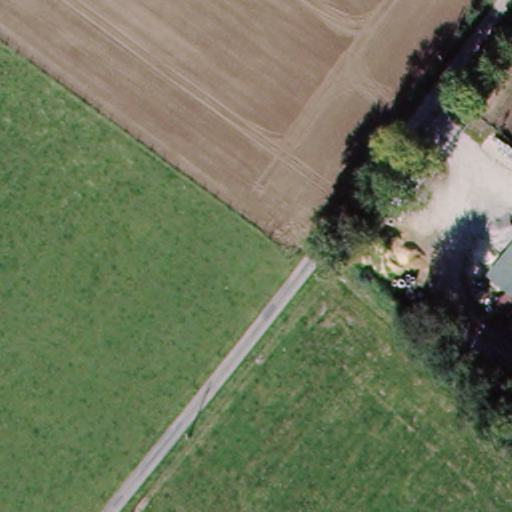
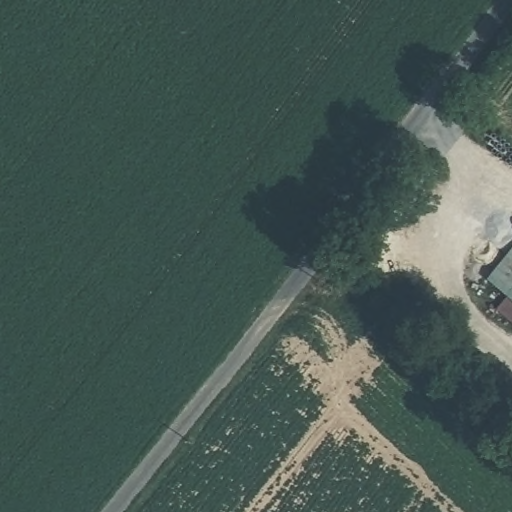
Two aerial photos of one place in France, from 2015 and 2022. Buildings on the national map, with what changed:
unchanged [(504,293),(485,277),(502,257),(492,249),(512,228),(512,321),(494,307),(504,293)]

